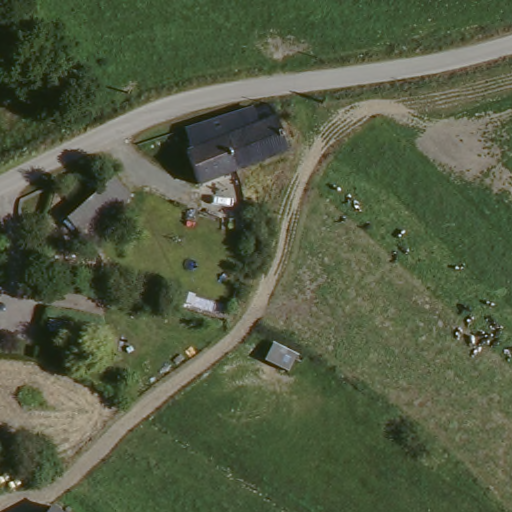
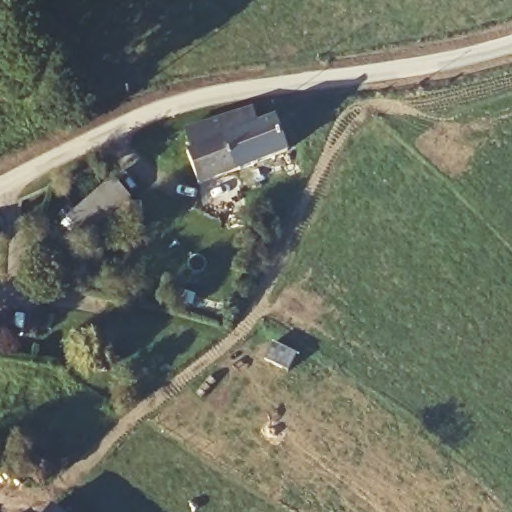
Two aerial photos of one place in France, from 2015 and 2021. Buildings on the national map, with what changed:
unchanged [(230,173),(188,190),(174,153),(179,149),(173,135),(207,121),(238,109),(239,114),(244,127),(216,137),(230,173)]
unchanged [(244,127),(239,114),(256,109),(260,120),(265,118),(277,156),(230,173),(216,137),(244,127)]
unchanged [(128,196),(86,239),(68,222),(110,180),(128,196)]
unchanged [(53,512),(42,512),(47,506),(53,512)]

